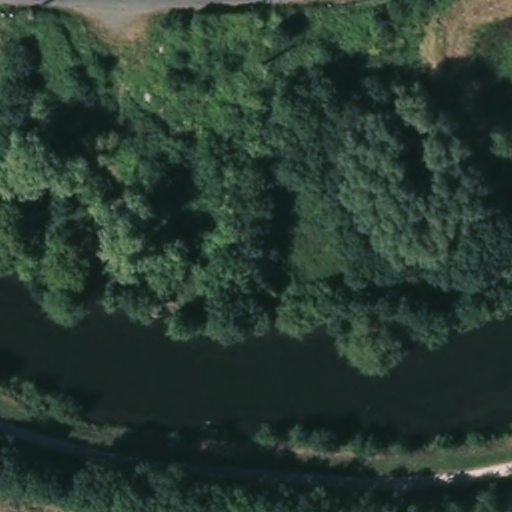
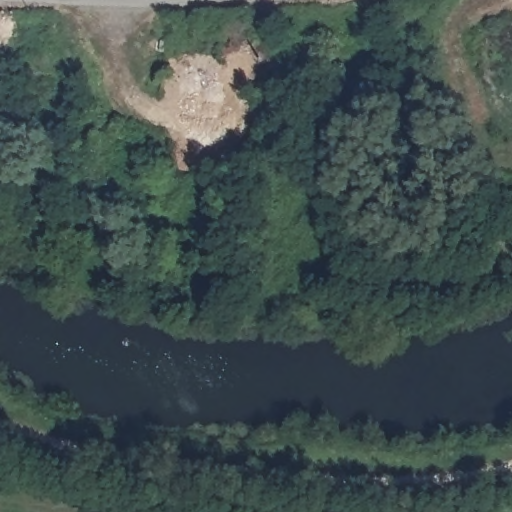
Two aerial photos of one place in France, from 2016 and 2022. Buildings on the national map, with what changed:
unchanged [(237,15),(250,15),(250,38),(202,42),(202,19),(237,15)]

